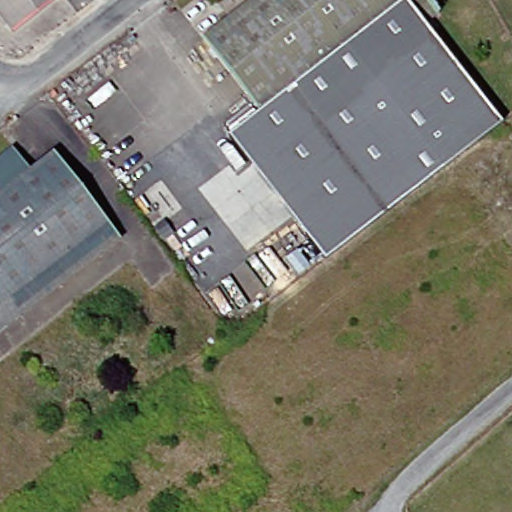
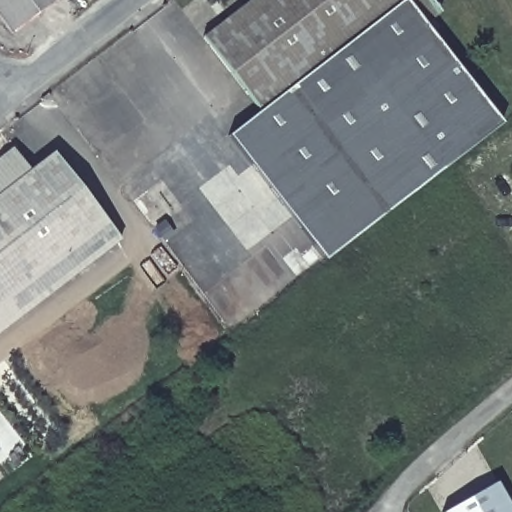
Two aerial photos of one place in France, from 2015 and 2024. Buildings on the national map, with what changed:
unchanged [(0,8),(0,0),(63,0),(19,31),(0,8)]
unchanged [(226,135),(256,111),(203,41),(254,0),(424,0),(437,17),(423,28),(499,126),(327,262),(226,135)]
unchanged [(29,167),(54,149),(110,215),(11,296),(25,312),(0,333),(0,155),(11,145),(29,167)]
unchanged [(123,233),(25,312),(11,296),(110,215),(123,233)]
new [(502,484),(512,502),(512,512),(453,512),(502,484)]

